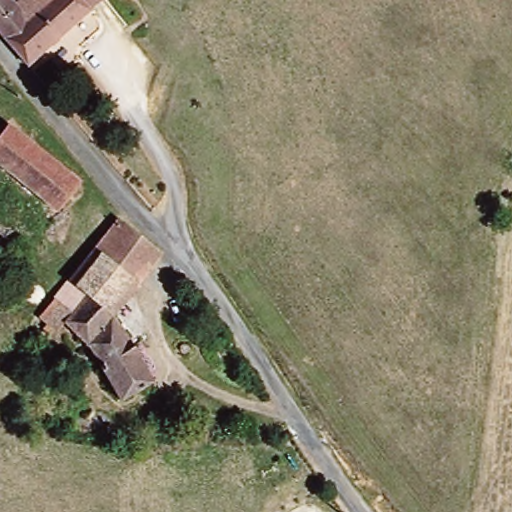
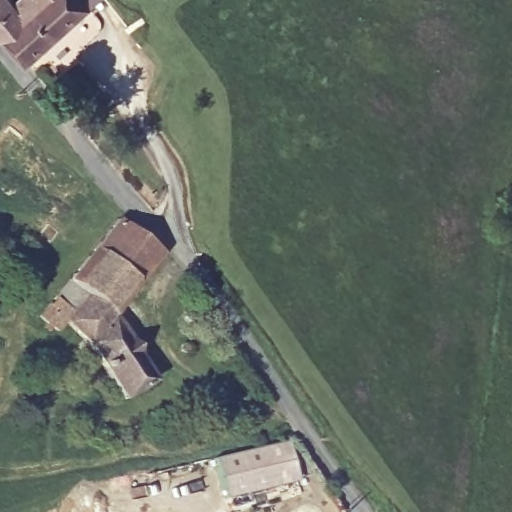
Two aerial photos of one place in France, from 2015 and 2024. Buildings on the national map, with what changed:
unchanged [(41,51),(21,71),(9,52),(0,41),(0,0),(17,0),(20,4),(24,0),(79,0),(90,13),(41,51)]
unchanged [(58,215),(0,168),(0,127),(2,125),(17,137),(80,187),(58,215)]
unchanged [(156,267),(140,288),(113,324),(156,382),(126,402),(111,377),(66,325),(55,335),(44,323),(107,240),(121,221),(156,267)]
new [(215,460),(287,443),(296,482),(224,498),(215,460)]

